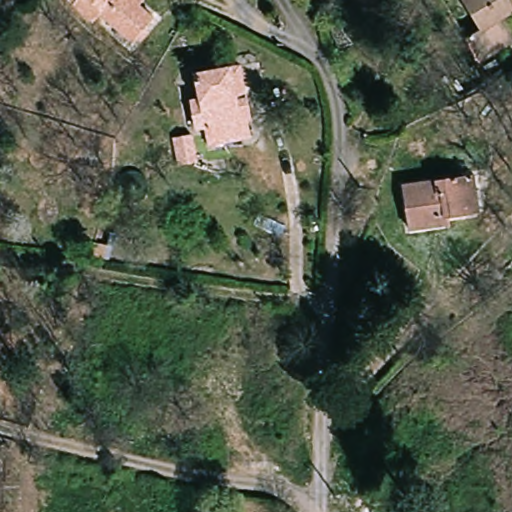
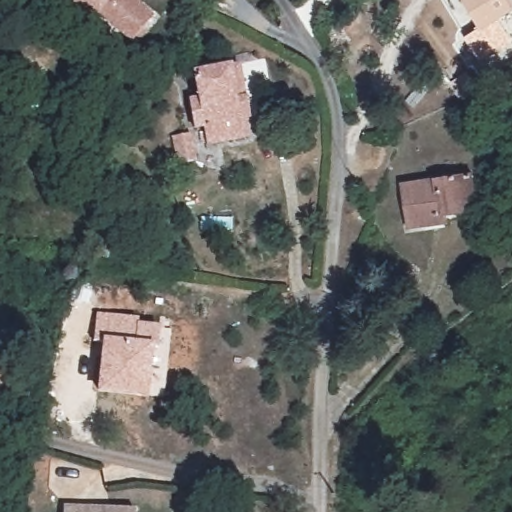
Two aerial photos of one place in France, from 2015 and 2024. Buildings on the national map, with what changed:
unchanged [(100,15),(95,23),(71,1),(72,0),(142,0),(140,3),(153,15),(132,44),(100,15)]
unchanged [(462,37),(478,29),(462,0),(509,0),(512,5),(512,14),(501,21),(512,39),(512,44),(481,66),(462,37)]
unchanged [(252,114),(243,116),(246,131),(208,139),(203,118),(193,120),(190,99),(201,96),(197,71),(245,61),(252,114)]
new [(195,136),(197,160),(177,162),(175,138),(195,136)]
unchanged [(480,212),(407,231),(398,187),(471,168),(480,212)]
new [(94,341),(97,314),(137,317),(137,322),(159,325),(157,348),(152,348),(147,399),(96,394),(102,342),(94,341)]
unchanged [(66,508),(138,510),(138,512),(66,512),(66,508)]

